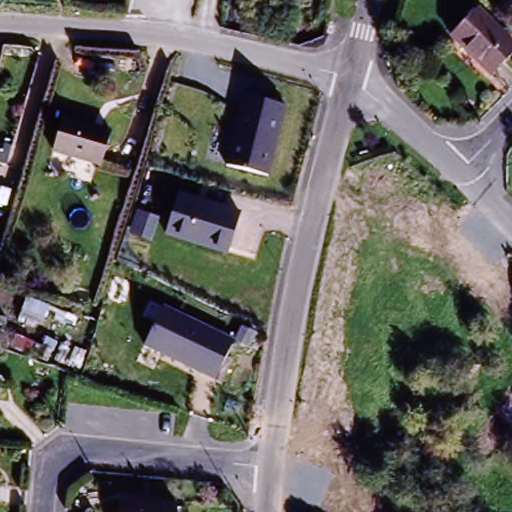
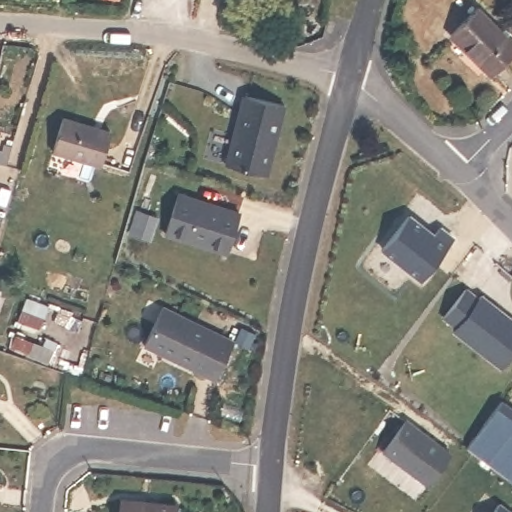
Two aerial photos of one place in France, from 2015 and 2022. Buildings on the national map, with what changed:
unchanged [(475,7),(512,39),(512,57),(487,81),(441,42),(475,7)]
unchanged [(284,108),(266,179),(223,168),(241,96),(284,108)]
unchanged [(110,129),(100,171),(45,157),(56,114),(110,129)]
demolished [(0,171),(0,169),(1,169),(0,171)]
unchanged [(238,214),(225,257),(161,236),(173,196),(238,214)]
new [(410,213),(435,233),(442,225),(454,237),(422,278),(384,245),(410,213)]
new [(465,288),(478,298),(481,294),(512,320),(512,353),(501,367),(453,330),(456,326),(443,317),(465,288)]
unchanged [(233,343),(212,383),(142,347),(160,307),(233,343)]
unchanged [(30,358),(32,345),(49,348),(46,361),(30,358)]
unchanged [(55,364),(59,349),(66,350),(68,346),(80,349),(76,369),(55,364)]
new [(512,407),(512,484),(467,449),(503,400),(512,407)]
new [(406,418),(449,451),(426,483),(382,450),(406,418)]
unchanged [(119,498),(169,502),(168,512),(118,512),(119,498)]
new [(497,502),(509,512),(490,512),(497,502)]

